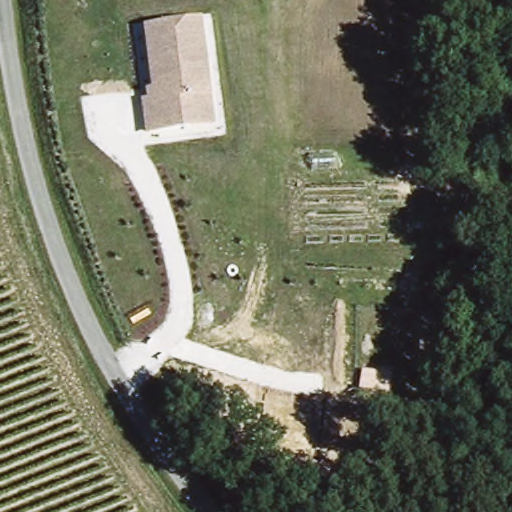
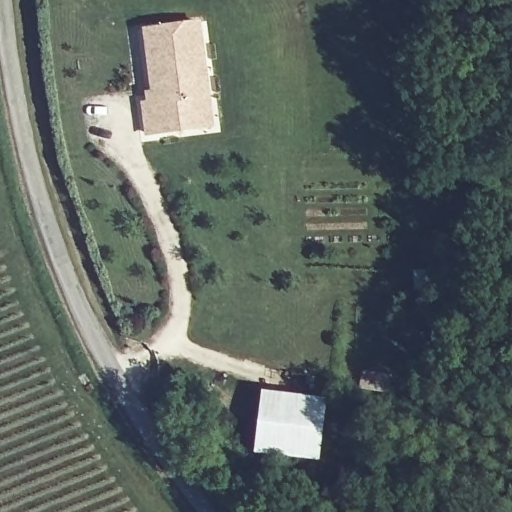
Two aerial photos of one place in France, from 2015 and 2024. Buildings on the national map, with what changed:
unchanged [(197,128),(155,134),(151,104),(163,102),(151,31),(203,23),(214,95),(218,125),(197,128)]
new [(327,398),(320,460),(254,453),(261,391),(327,398)]

